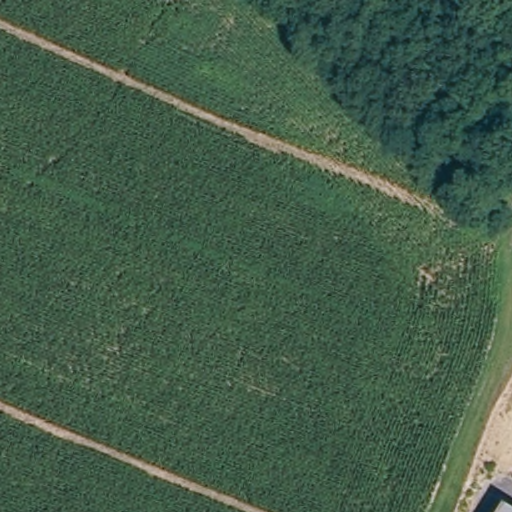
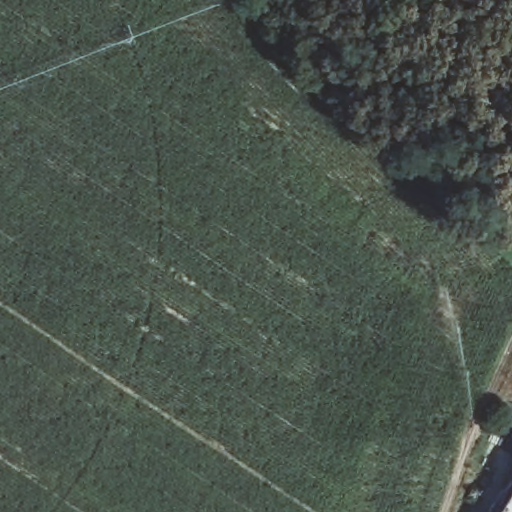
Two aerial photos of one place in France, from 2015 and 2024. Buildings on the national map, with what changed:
unchanged [(507,504),(512,496),(512,512),(501,512),(507,504)]

